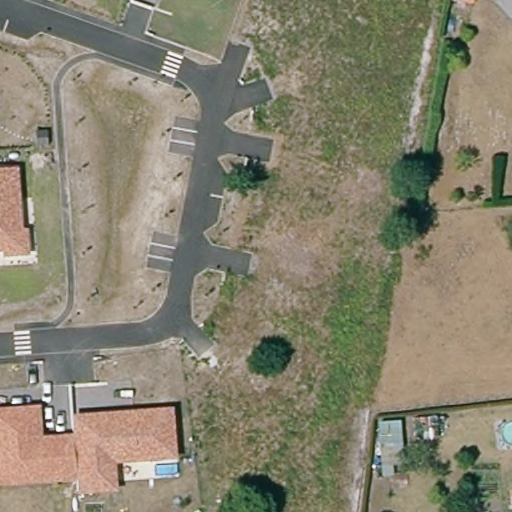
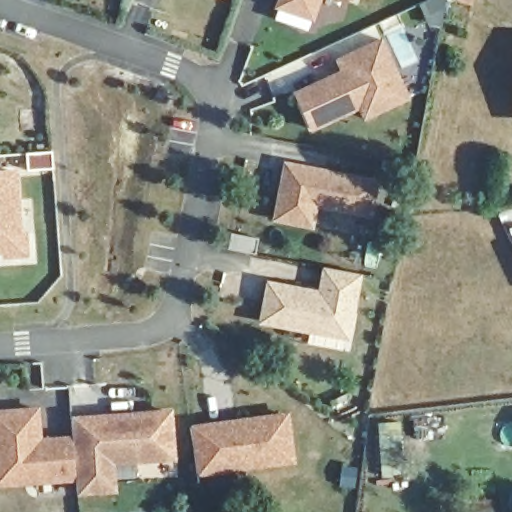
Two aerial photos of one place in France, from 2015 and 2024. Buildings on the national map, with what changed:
new [(274,9),(277,0),(321,0),(314,20),(274,9)]
unchanged [(452,1),(452,0),(477,0),(476,5),(452,1)]
new [(346,66),(341,55),(346,52),(385,35),(392,50),(412,93),(398,100),(368,114),(363,103),(316,125),(299,88),(341,69),(346,66)]
unchanged [(347,205),(318,200),(314,221),(278,215),(289,160),(379,177),(375,200),(373,210),(347,205)]
unchanged [(18,166),(22,230),(28,230),(30,258),(1,260),(1,254),(0,254),(0,168),(18,166)]
new [(272,280),(309,286),(309,290),(323,293),(329,263),(362,270),(350,332),(265,316),(272,280)]
unchanged [(39,405),(41,436),(73,434),(71,415),(173,406),(176,458),(115,464),(117,492),(78,495),(77,481),(0,487),(0,408),(39,405)]
new [(295,463),(197,476),(190,425),(290,411),(295,463)]
new [(401,420),(404,459),(393,460),(393,470),(386,471),(383,420),(401,420)]

